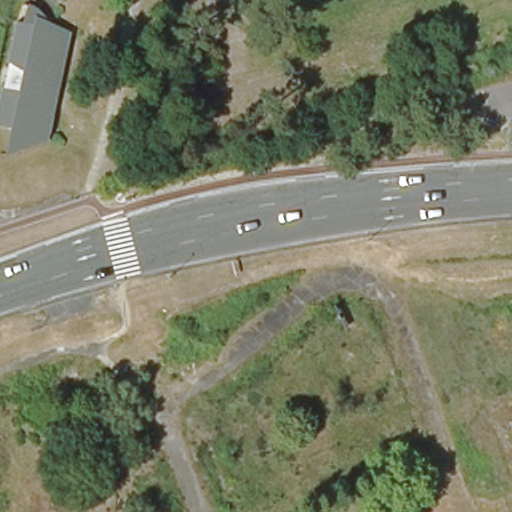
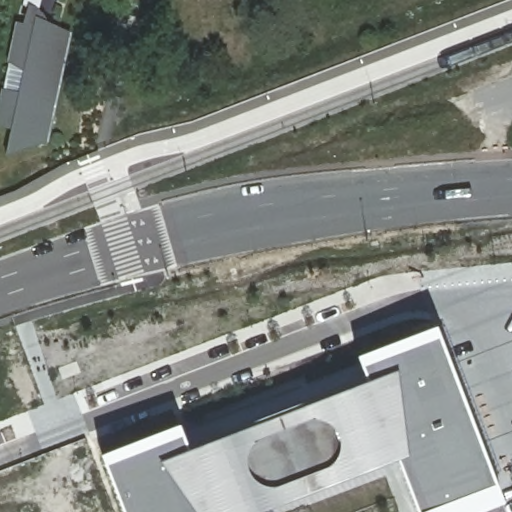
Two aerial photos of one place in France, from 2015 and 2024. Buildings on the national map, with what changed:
unchanged [(26,8),(39,11),(37,20),(69,29),(47,141),(4,151),(7,128),(0,127),(0,89),(15,92),(18,69),(5,60),(14,21),(23,23),(26,8)]
new [(177,449),(358,384),(347,361),(426,331),(488,488),(427,512),(409,512),(389,461),(255,512),(113,512),(94,461),(170,430),(177,449)]

